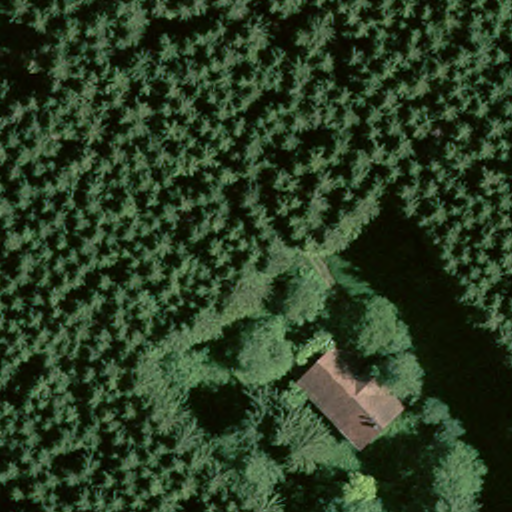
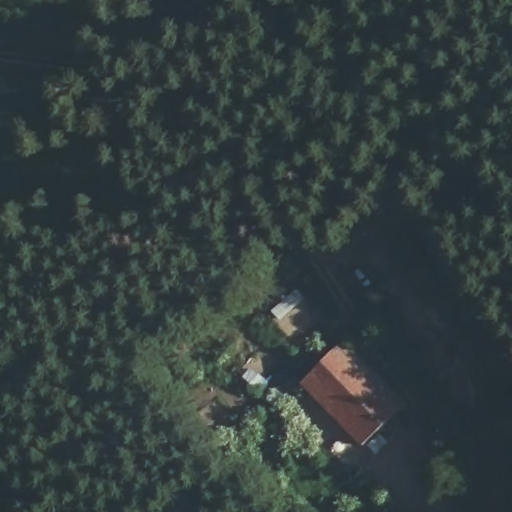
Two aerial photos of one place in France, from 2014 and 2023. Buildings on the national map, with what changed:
unchanged [(371,452),(303,388),(293,380),(337,338),(346,347),(411,411),(371,452)]

